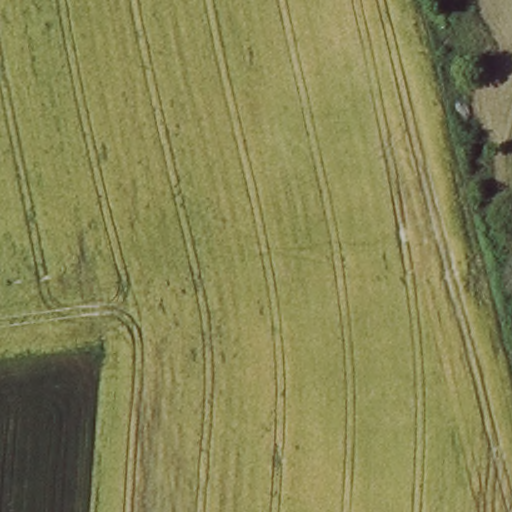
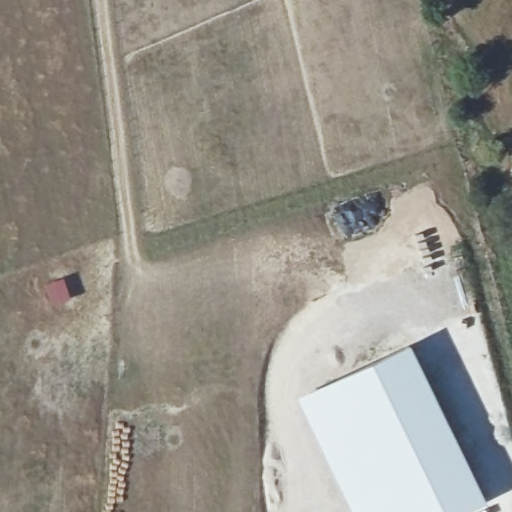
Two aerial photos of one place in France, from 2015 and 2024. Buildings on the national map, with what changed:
new [(411,342),(461,444),(487,501),(464,512),(351,512),(297,396),(411,342)]

